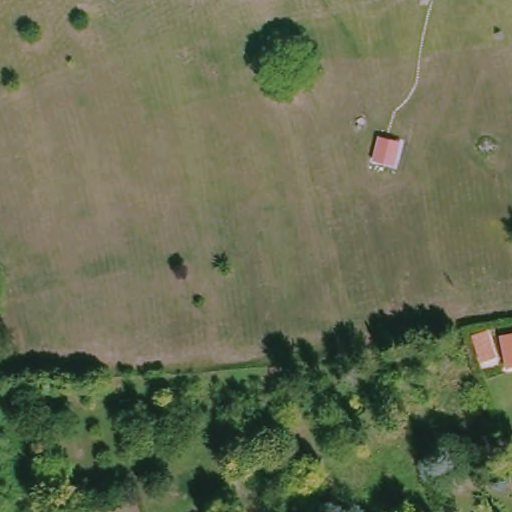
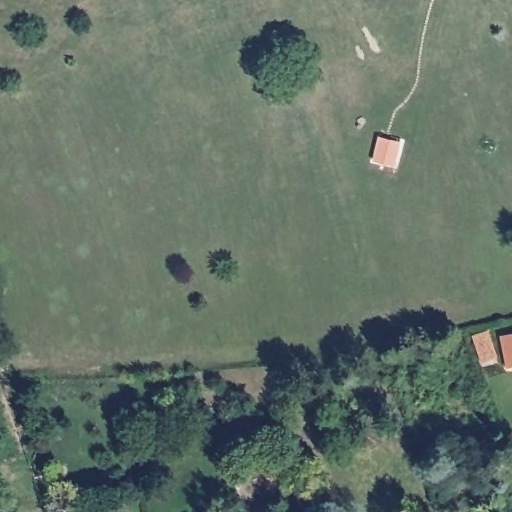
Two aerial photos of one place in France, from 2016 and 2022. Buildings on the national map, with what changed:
unchanged [(378,147),(397,151),(392,170),(374,165),(378,147)]
unchanged [(502,337),(512,335),(512,368),(507,368),(502,337)]

